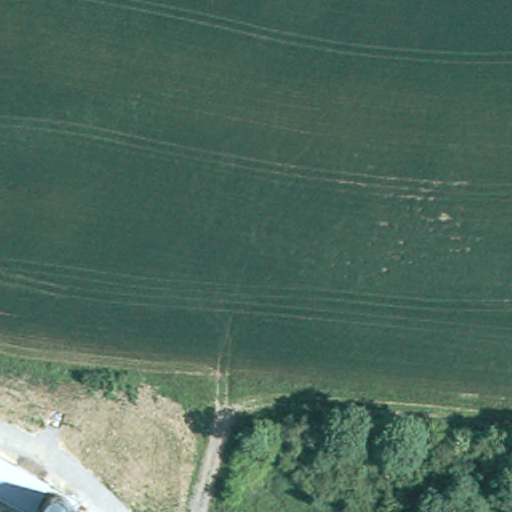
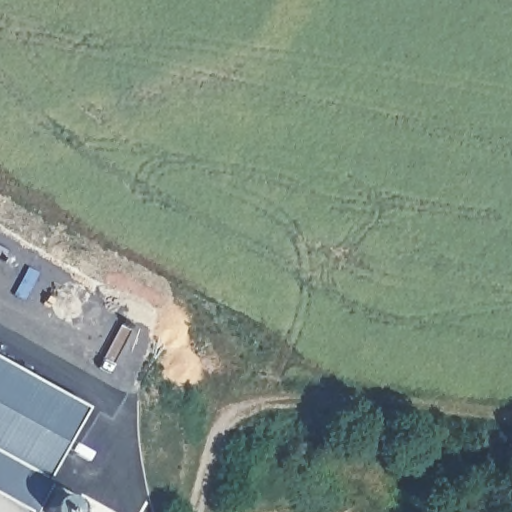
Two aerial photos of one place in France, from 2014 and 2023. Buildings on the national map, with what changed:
new [(0,454),(0,357),(84,403),(44,478),(0,454)]
unchanged [(74,512),(0,512),(0,455),(81,499),(74,512)]

